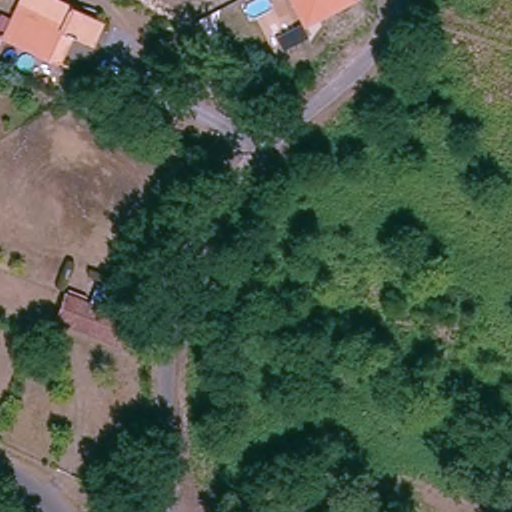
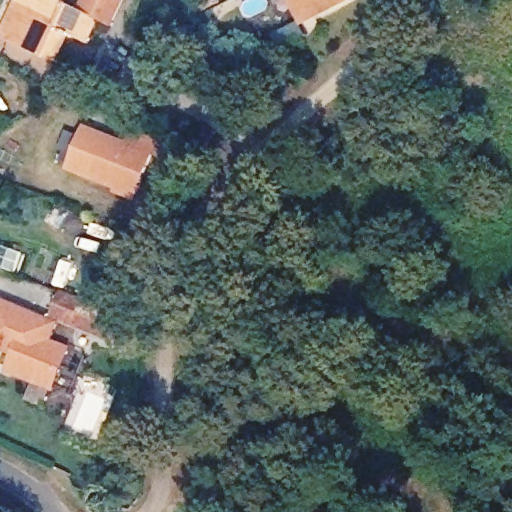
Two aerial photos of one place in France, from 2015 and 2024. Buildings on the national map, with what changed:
unchanged [(0,37),(0,36),(18,0),(54,0),(104,22),(89,54),(65,44),(55,64),(44,58),(0,37)]
unchanged [(306,27),(291,0),(356,0),(306,27)]
new [(133,142),(139,129),(162,139),(156,152),(139,191),(76,162),(93,124),(133,142)]
unchanged [(123,318),(113,341),(54,317),(64,294),(123,318)]
new [(56,339),(74,347),(56,392),(6,372),(13,355),(0,350),(0,298),(63,323),(56,339)]

